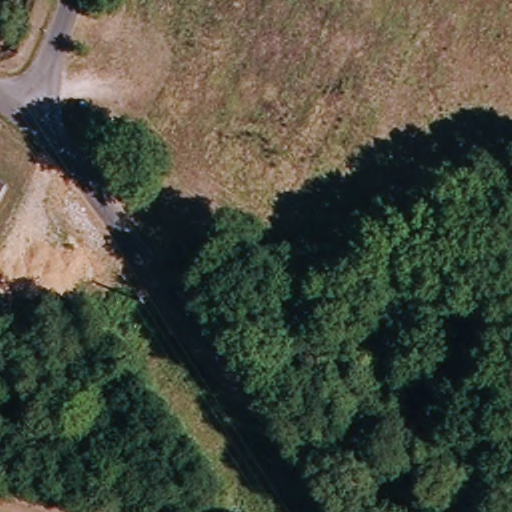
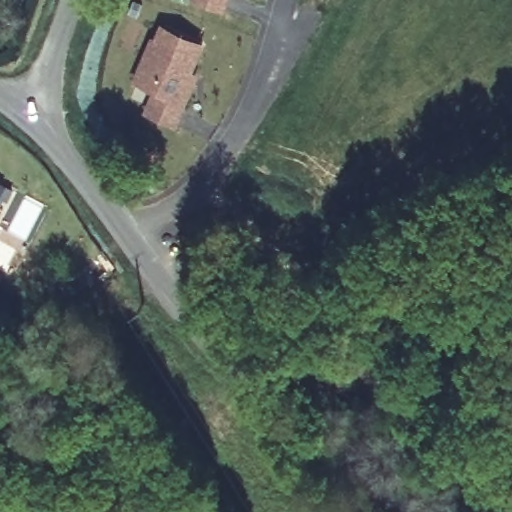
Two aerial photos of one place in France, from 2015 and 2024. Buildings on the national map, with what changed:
new [(225,12),(192,0),(229,0),(225,12)]
new [(194,72),(199,74),(175,129),(142,115),(153,91),(132,82),(151,38),(156,40),(162,25),(206,42),(194,72)]
unchanged [(7,183),(0,196),(0,180),(7,183)]

